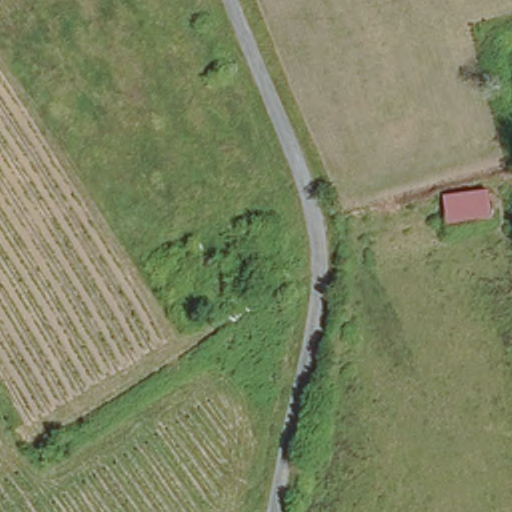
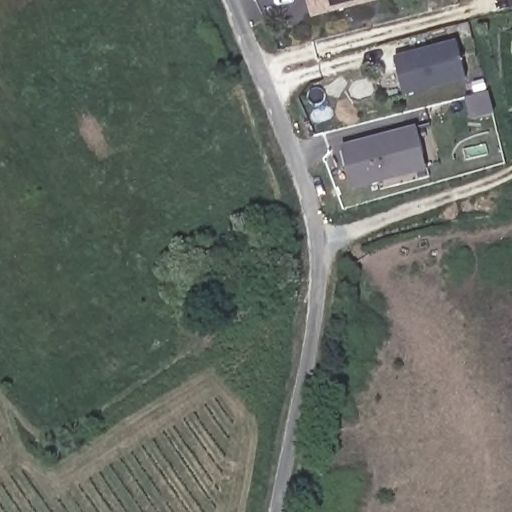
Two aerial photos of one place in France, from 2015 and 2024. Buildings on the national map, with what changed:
new [(309,0),(382,0),(313,17),(309,0)]
new [(456,39),(467,80),(405,96),(394,56),(456,39)]
new [(485,94),(491,118),(472,123),(466,98),(485,94)]
new [(428,170),(353,190),(342,145),(416,125),(428,170)]
demolished [(494,218),(449,223),(447,192),(491,189),(494,218)]

